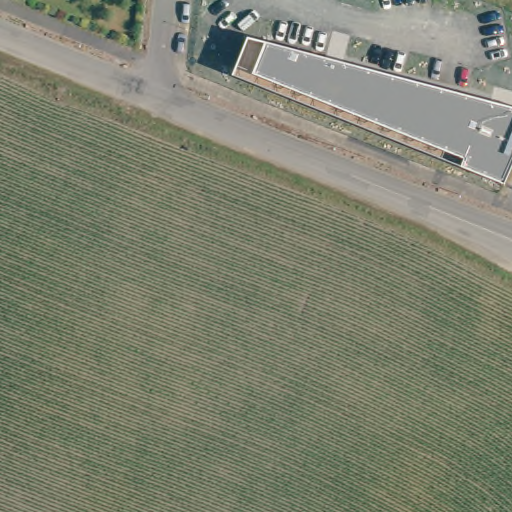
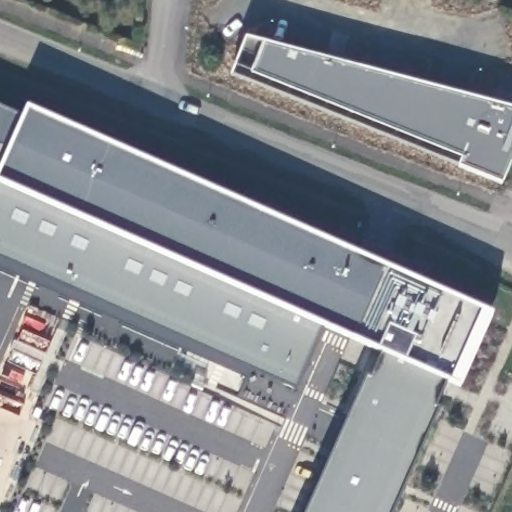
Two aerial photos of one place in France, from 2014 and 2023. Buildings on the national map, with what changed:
unchanged [(505,185),(233,78),(247,39),(512,106),(512,168),(505,185)]
new [(445,382),(434,408),(438,410),(392,512),(306,512),(367,376),(371,378),(382,352),(325,327),(297,388),(252,369),(246,379),(0,269),(0,106),(23,116),(28,106),(496,314),(458,389),(445,382)]

